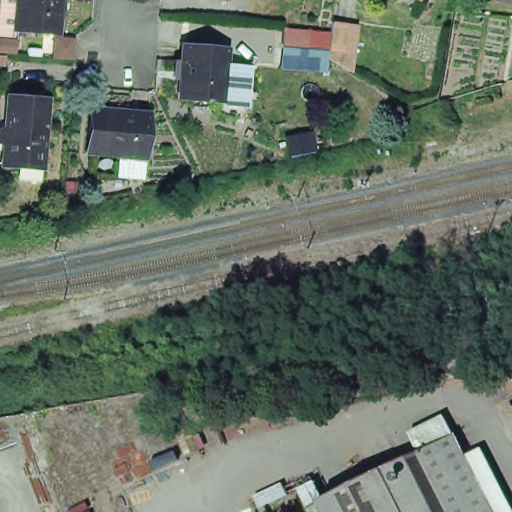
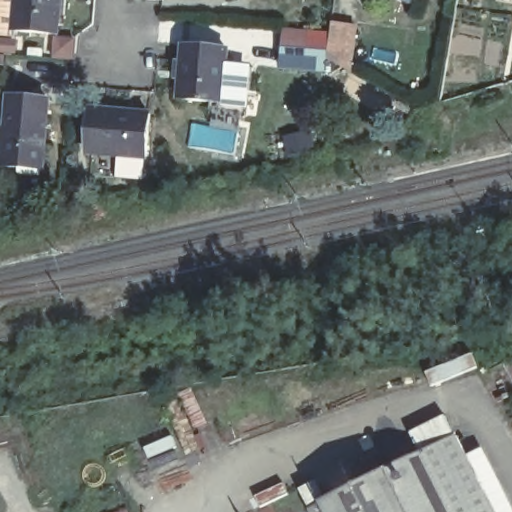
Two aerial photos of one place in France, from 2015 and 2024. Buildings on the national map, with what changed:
unchanged [(0,0),(60,0),(57,34),(12,31),(12,37),(0,36),(0,0)]
unchanged [(326,59),(330,32),(332,21),(359,25),(351,70),(340,65),(326,59)]
unchanged [(299,49),(271,45),(273,26),(302,30),(299,49)]
unchanged [(230,47),(225,103),(182,98),(187,43),(230,47)]
unchanged [(52,99),(45,171),(6,168),(12,95),(52,99)]
unchanged [(155,110),(151,154),(94,149),(98,105),(155,110)]
unchanged [(403,292),(402,284),(382,289),(377,267),(414,257),(419,281),(411,283),(411,290),(403,292)]
unchanged [(494,512),(324,512),(320,504),(457,431),(494,512)]

